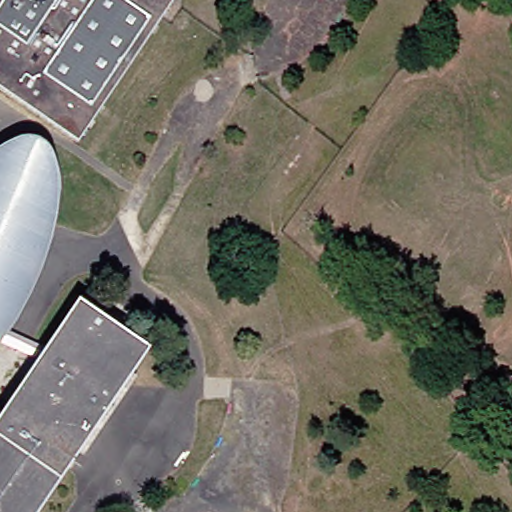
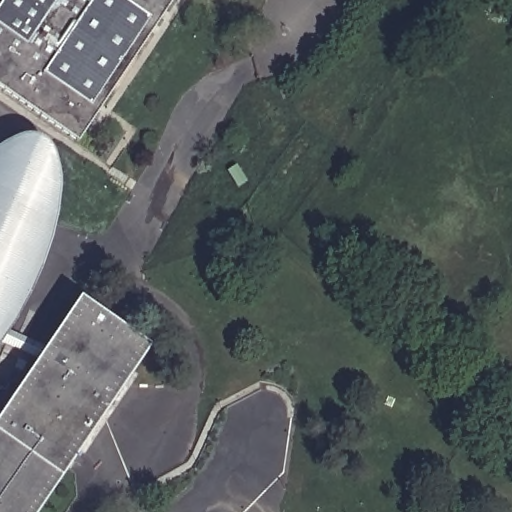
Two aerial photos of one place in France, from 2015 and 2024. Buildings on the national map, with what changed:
unchanged [(177,0),(75,149),(0,97),(0,0),(177,0)]
unchanged [(5,160),(13,155),(24,153),(37,159),(42,169),(44,179),(45,189),(45,198),(45,208),(43,217),(41,226),(40,235),(37,244),(35,253),(32,261),(29,269),(25,277),(21,287),(18,294),(15,301),(10,309),(6,317),(1,324),(0,326),(0,163),(5,160)]
unchanged [(39,358),(70,312),(143,361),(39,512),(0,512),(0,416),(33,367),(0,351),(0,339),(39,358)]

